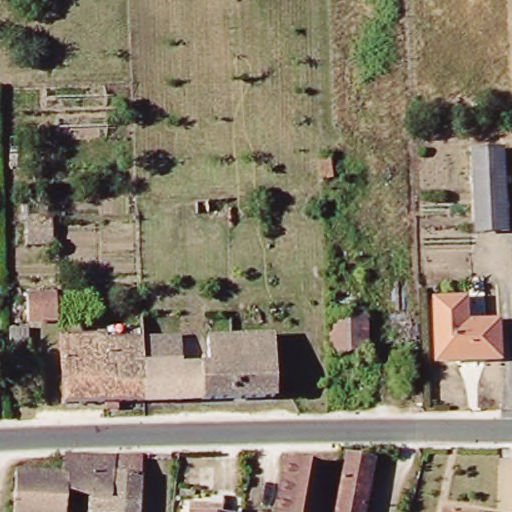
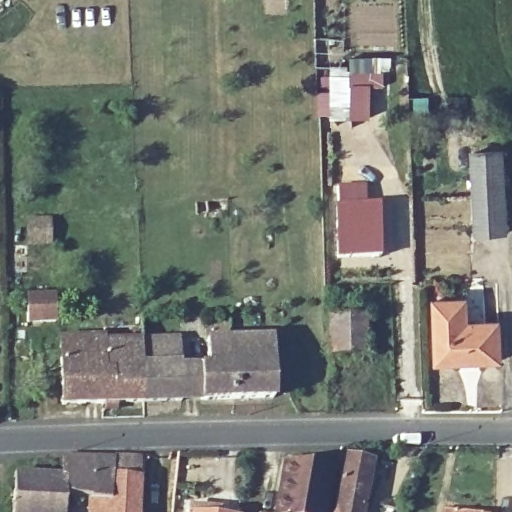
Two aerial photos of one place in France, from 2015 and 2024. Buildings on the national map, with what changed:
new [(386,104),(373,105),(374,118),(333,121),(330,75),(351,73),(350,59),(382,57),(385,77),(386,104)]
demolished [(107,90),(107,109),(48,110),(46,92),(107,90)]
unchanged [(478,222),(475,164),(502,163),(505,221),(478,222)]
new [(391,207),(392,256),(336,257),(334,185),(366,184),(367,204),(379,204),(391,207)]
unchanged [(198,205),(224,204),(225,221),(199,222),(198,205)]
unchanged [(58,219),(59,242),(29,245),(28,221),(58,219)]
unchanged [(58,298),(57,320),(33,320),(33,302),(33,297),(58,298)]
unchanged [(502,358),(440,361),(438,302),(465,301),(466,322),(500,321),(502,358)]
unchanged [(331,353),(330,315),(356,314),(357,352),(331,353)]
unchanged [(178,318),(180,368),(206,368),(205,341),(232,341),(233,401),(145,402),(144,342),(143,331),(143,319),(178,318)]
unchanged [(102,343),(144,342),(145,402),(63,404),(61,340),(102,338),(102,343)]
unchanged [(233,401),(232,341),(272,341),(273,400),(233,401)]
unchanged [(342,452),(370,458),(360,512),(332,512),(342,452)]
unchanged [(16,474),(63,477),(64,456),(111,457),(110,500),(89,499),(62,498),(62,512),(14,512),(16,474)]
unchanged [(138,460),(136,512),(89,512),(89,499),(110,500),(111,457),(138,460)]
unchanged [(283,459),(328,467),(321,512),(273,512),(283,459)]
unchanged [(448,510),(461,512),(448,512),(448,510)]

